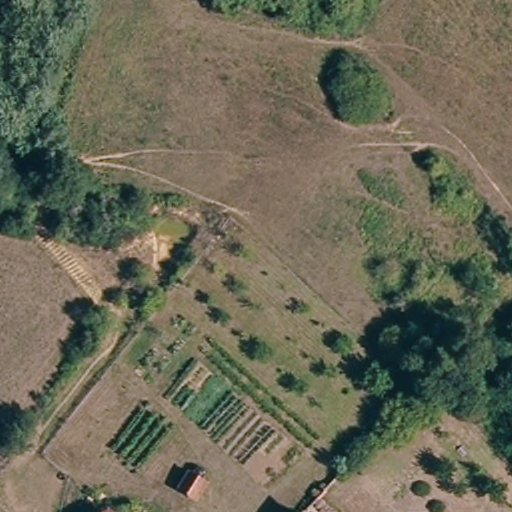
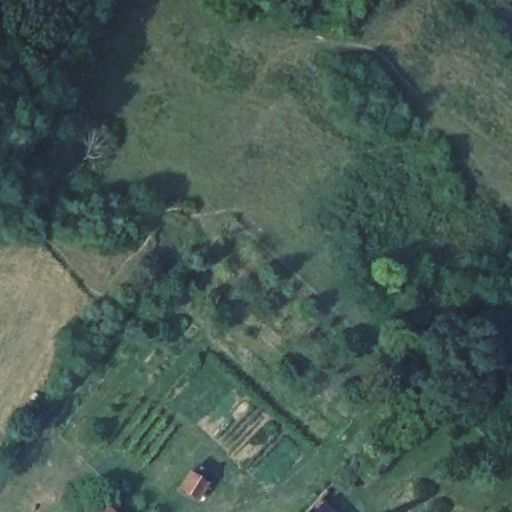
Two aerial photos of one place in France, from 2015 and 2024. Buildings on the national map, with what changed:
unchanged [(214,500),(195,490),(204,473),(223,484),(214,500)]
unchanged [(99,497),(114,512),(86,512),(99,497)]

